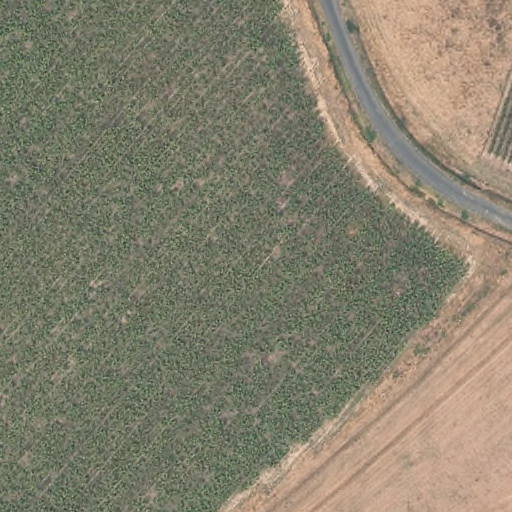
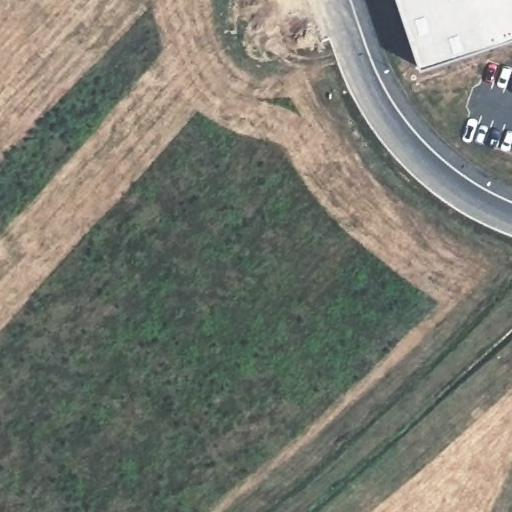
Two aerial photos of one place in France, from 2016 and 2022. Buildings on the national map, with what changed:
new [(395,0),(512,0),(512,33),(417,65),(395,0)]

